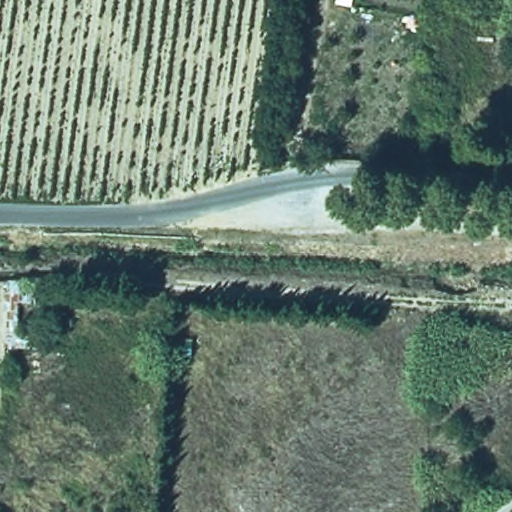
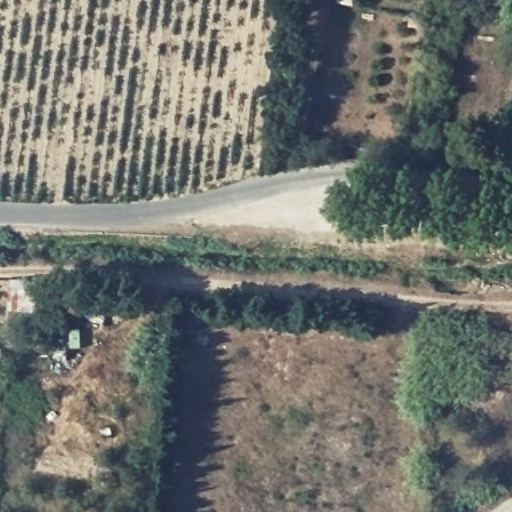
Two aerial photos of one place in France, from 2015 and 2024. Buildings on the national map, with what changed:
unchanged [(32,278),(30,286),(40,287),(39,303),(22,304),(18,328),(35,330),(35,349),(4,347),(10,276),(32,278)]

